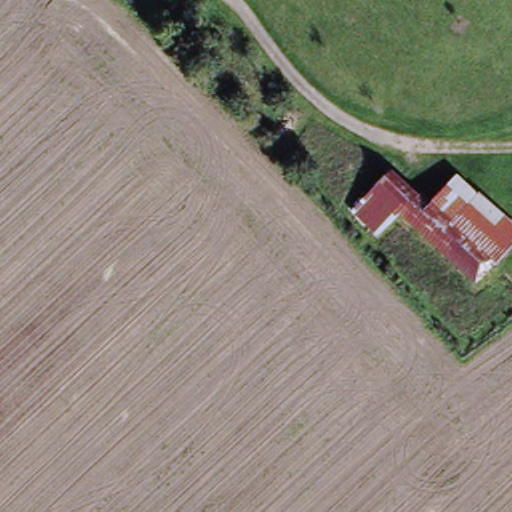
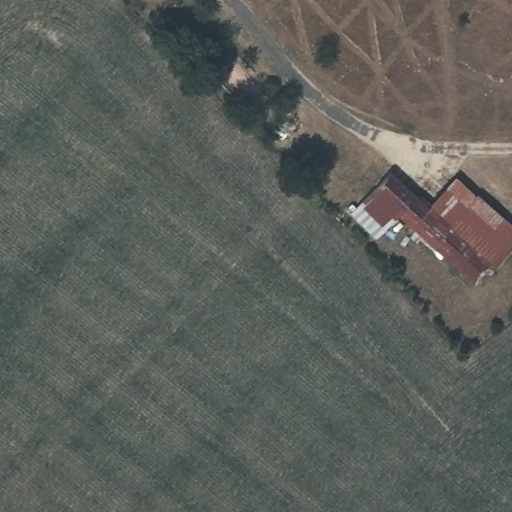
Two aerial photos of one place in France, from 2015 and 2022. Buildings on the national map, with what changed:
unchanged [(469,273),(423,228),(400,249),(355,207),(395,165),(442,211),(486,253),(469,273)]
unchanged [(442,211),(467,186),(510,229),(486,253),(442,211)]

